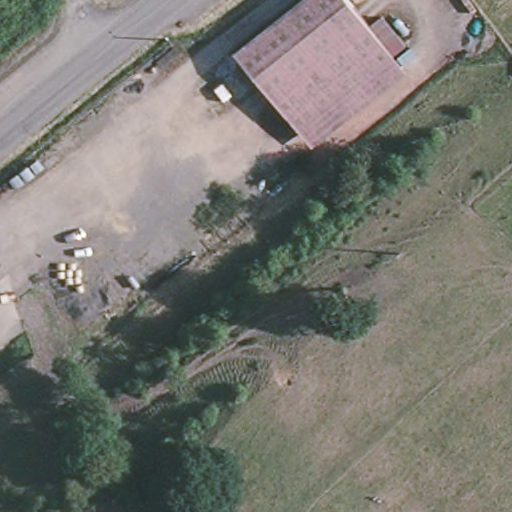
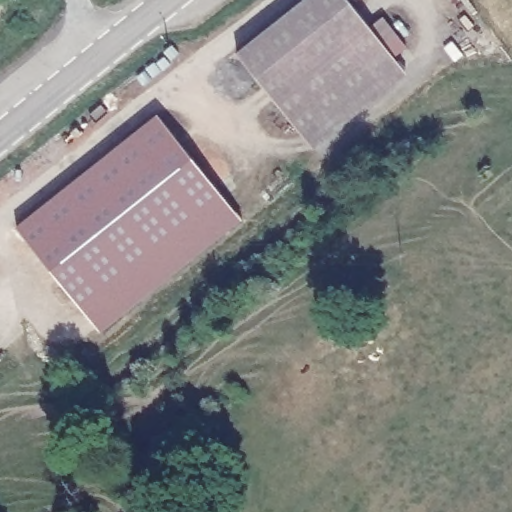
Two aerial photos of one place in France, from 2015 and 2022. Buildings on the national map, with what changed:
unchanged [(236,53),(304,0),(348,0),(370,27),(382,17),(406,47),(393,57),(407,73),(312,148),(236,53)]
new [(242,219),(100,331),(15,227),(157,114),(242,219)]

